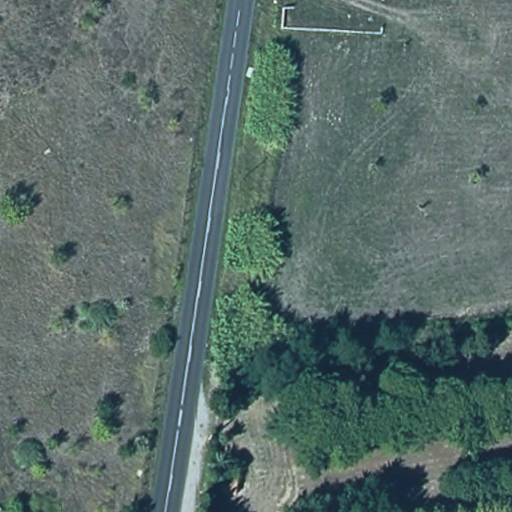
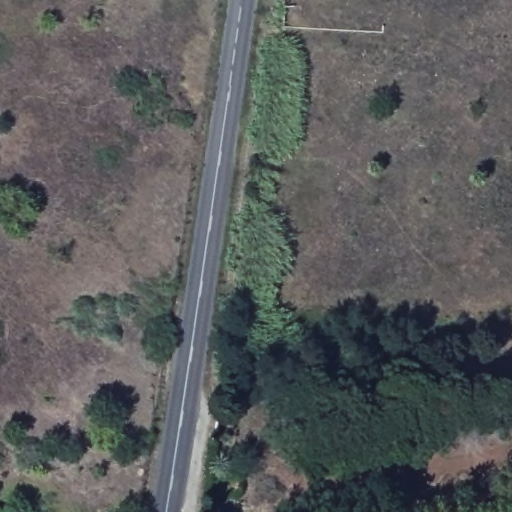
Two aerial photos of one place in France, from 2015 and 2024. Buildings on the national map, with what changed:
unchanged [(243,472),(238,496),(218,493),(219,469),(243,472)]

